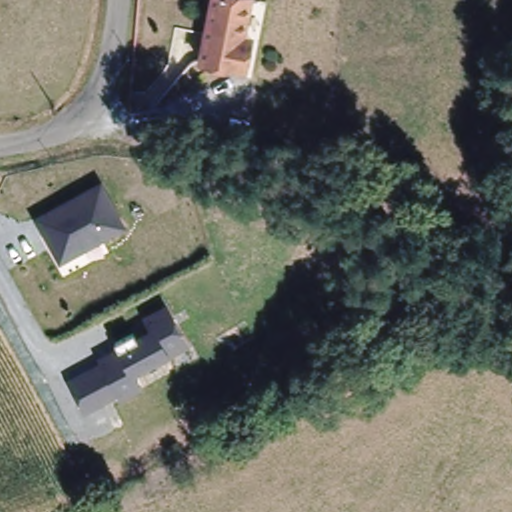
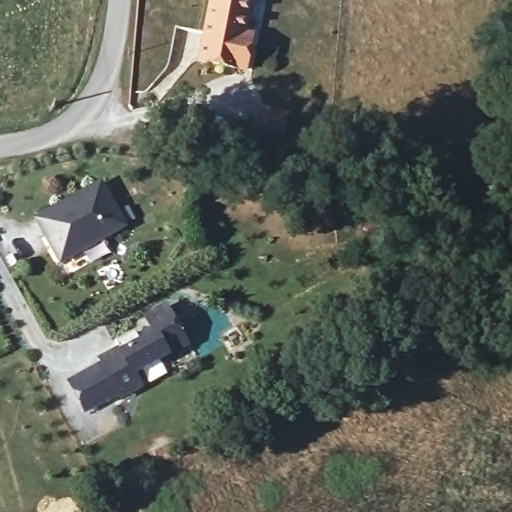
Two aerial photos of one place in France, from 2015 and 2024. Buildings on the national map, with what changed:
unchanged [(250,45),(245,70),(201,61),(215,0),(250,0),(243,35),(251,36),(250,45)]
unchanged [(101,183),(126,225),(62,263),(37,219),(101,183)]
unchanged [(101,368),(100,364),(117,355),(115,347),(132,338),(135,344),(152,335),(145,323),(165,312),(185,350),(132,380),(139,393),(120,403),(117,398),(84,416),(70,386),(101,368)]

